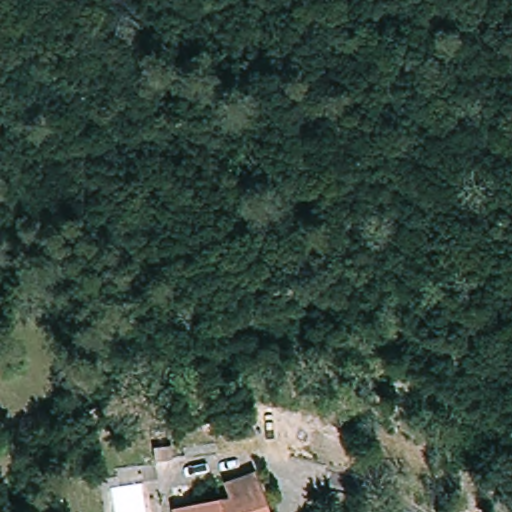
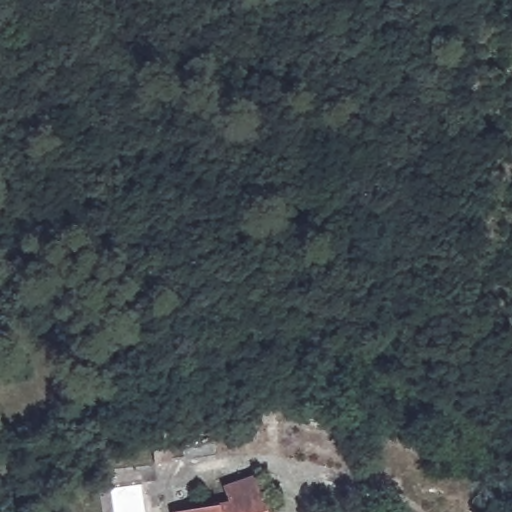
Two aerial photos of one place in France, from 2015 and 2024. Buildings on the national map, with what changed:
unchanged [(248,439),(240,441),(239,435),(247,433),(248,439)]
unchanged [(170,461),(152,464),(150,452),(167,449),(170,461)]
unchanged [(227,487),(255,478),(268,512),(191,512),(232,505),(227,487)]
unchanged [(59,488),(60,504),(45,505),(44,489),(59,488)]

